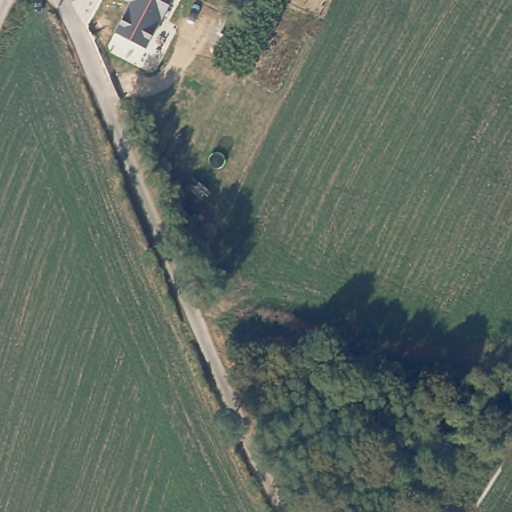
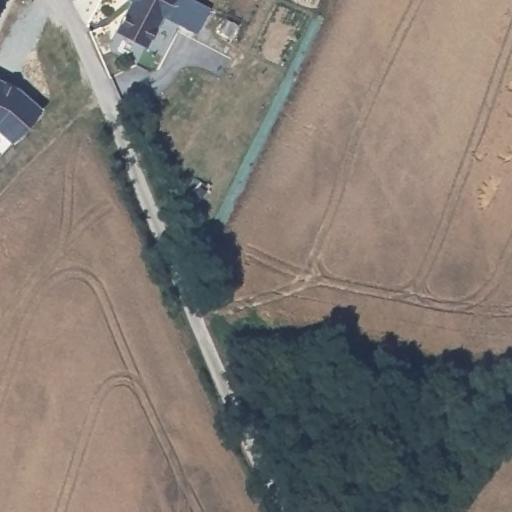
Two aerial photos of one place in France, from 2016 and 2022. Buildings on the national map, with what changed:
unchanged [(141,4),(134,0),(143,0),(141,4)]
unchanged [(171,22),(153,12),(159,0),(181,0),(171,22)]
new [(0,133),(0,80),(14,87),(40,110),(11,143),(0,133)]

